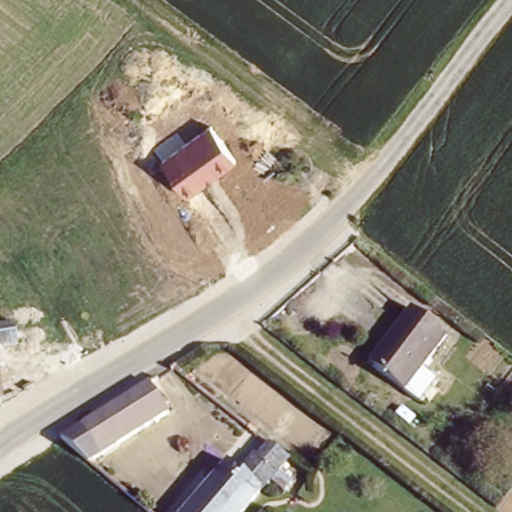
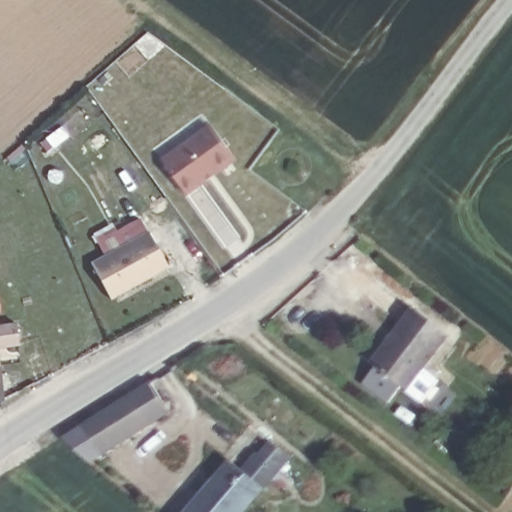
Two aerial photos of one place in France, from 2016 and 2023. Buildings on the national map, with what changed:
unchanged [(160,163),(209,124),(235,160),(186,197),(160,163)]
new [(147,232),(169,268),(112,300),(90,263),(104,256),(93,234),(112,224),(115,231),(139,218),(147,232)]
unchanged [(394,329),(414,304),(451,333),(407,389),(376,365),(370,360),(394,329)]
unchanged [(24,340),(9,341),(10,364),(0,364),(0,318),(24,316),(24,340)]
unchanged [(8,399),(0,405),(0,364),(10,364),(8,399)]
unchanged [(84,455),(60,436),(156,378),(172,406),(84,455)]
unchanged [(272,450),(287,464),(239,512),(175,512),(237,460),(246,471),(272,450)]

